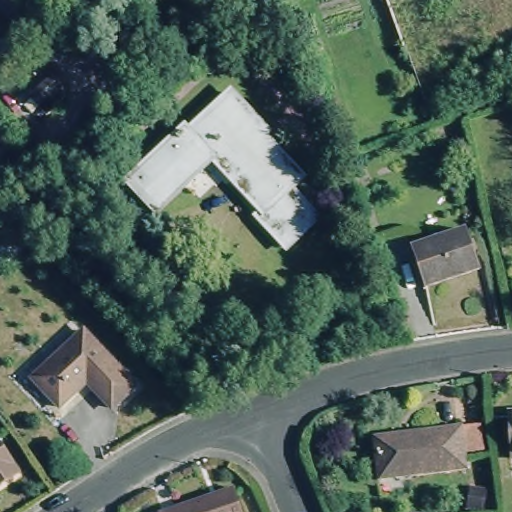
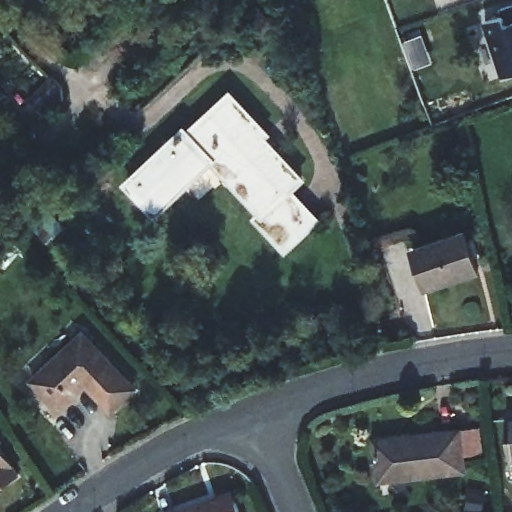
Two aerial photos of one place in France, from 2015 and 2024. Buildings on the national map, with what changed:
new [(502,77),(487,21),(501,18),(500,10),(512,6),(512,74),(502,77)]
unchanged [(51,75),(61,86),(62,101),(45,118),(37,108),(30,114),(24,105),(29,100),(27,97),(50,74),(51,75)]
unchanged [(126,183),(182,132),(185,135),(228,98),(264,136),(261,139),(299,180),(287,191),(313,221),(282,249),(255,218),(258,214),(210,163),(152,214),(126,183)]
unchanged [(0,158),(0,145),(7,152),(0,158)]
unchanged [(70,228),(52,245),(32,224),(50,207),(70,228)]
unchanged [(477,269),(427,285),(415,249),(467,232),(477,269)]
unchanged [(27,259),(12,274),(0,262),(15,248),(27,259)]
unchanged [(30,384),(80,338),(132,392),(109,414),(84,388),(57,412),(30,384)]
unchanged [(511,466),(507,419),(512,419),(512,465),(511,466)]
unchanged [(375,439),(460,429),(466,471),(380,479),(375,439)]
unchanged [(4,484),(0,487),(0,441),(21,471),(4,484)]
unchanged [(233,491),(240,512),(161,512),(233,491)]

